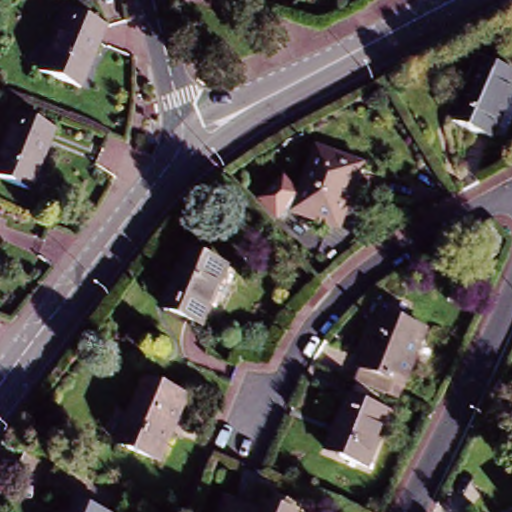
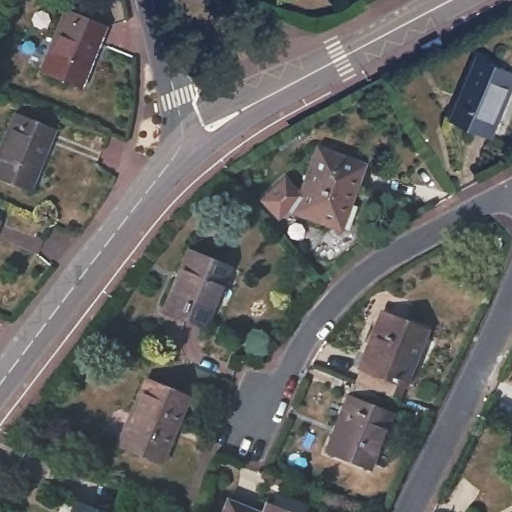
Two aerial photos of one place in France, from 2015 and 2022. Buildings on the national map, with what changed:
unchanged [(102,27),(76,90),(36,72),(63,11),(102,27)]
unchanged [(478,60),(512,74),(512,85),(490,139),(450,122),(478,60)]
unchanged [(30,192),(0,180),(0,150),(15,115),(55,131),(30,192)]
unchanged [(328,227),(290,212),(317,148),(363,167),(353,191),(336,231),(328,227)]
unchanged [(187,256),(227,272),(202,331),(163,315),(187,256)]
unchanged [(365,374),(360,372),(383,315),(427,332),(403,390),(390,384),(385,398),(365,391),(360,388),(365,374)]
unchanged [(144,382),(186,400),(160,463),(117,446),(144,382)]
unchanged [(360,388),(365,391),(385,398),(380,412),(392,417),(369,473),(327,456),(350,400),(353,402),(360,388)]
unchanged [(97,512),(64,512),(69,500),(97,512)]
unchanged [(250,512),(227,512),(231,504),(250,512)]
unchanged [(280,512),(267,512),(268,507),(280,512)]

